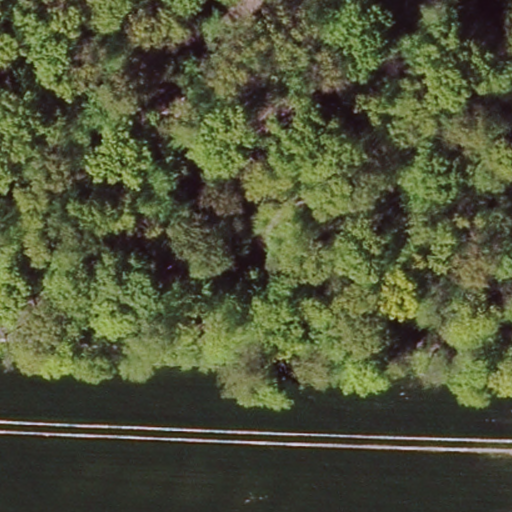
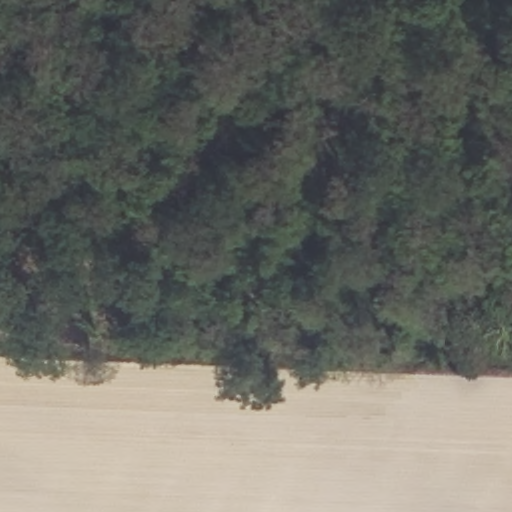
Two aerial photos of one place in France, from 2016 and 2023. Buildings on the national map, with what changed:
[]

